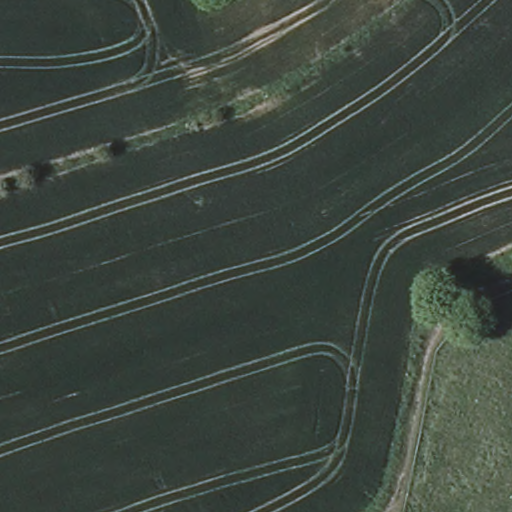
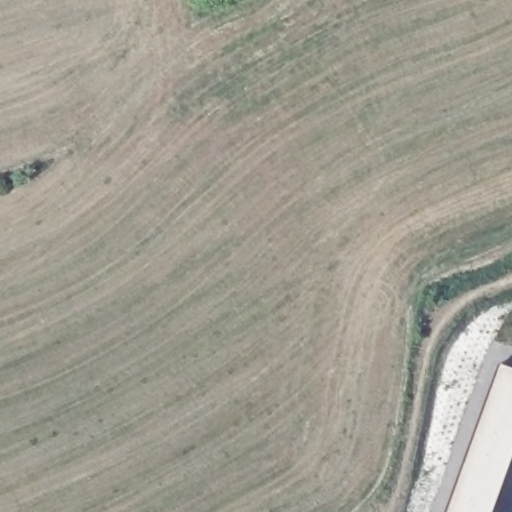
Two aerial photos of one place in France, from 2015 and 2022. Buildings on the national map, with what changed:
new [(493,512),(447,512),(500,365),(512,370),(512,460),(493,512)]

